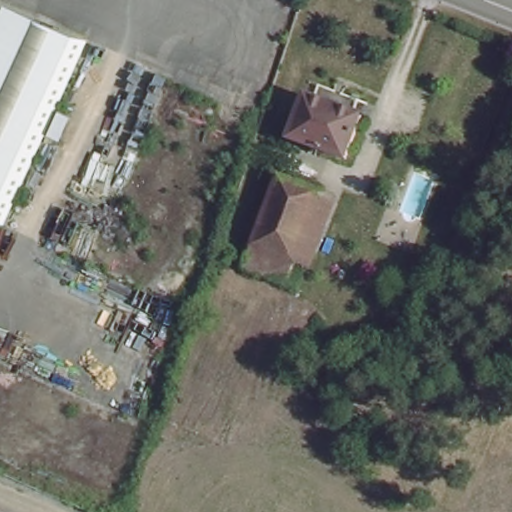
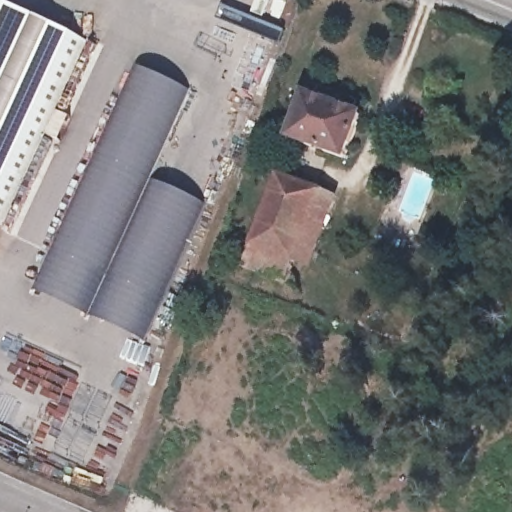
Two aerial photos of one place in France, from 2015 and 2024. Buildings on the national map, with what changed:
unchanged [(0,221),(0,3),(79,38),(0,221)]
new [(188,89),(153,170),(206,195),(162,296),(49,244),(133,63),(188,89)]
unchanged [(311,93),(366,115),(349,156),(294,134),(311,93)]
unchanged [(291,164),(332,180),(295,271),(254,255),(291,164)]

